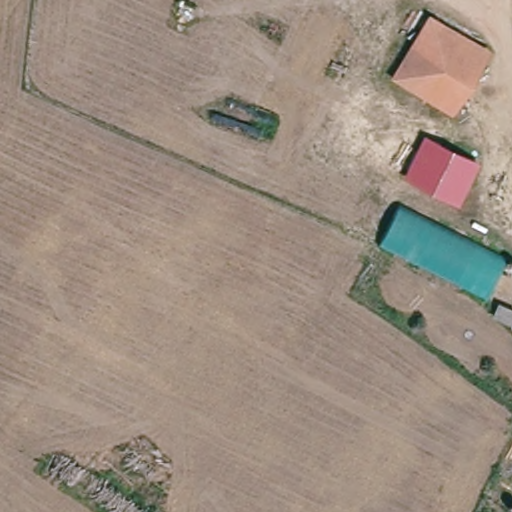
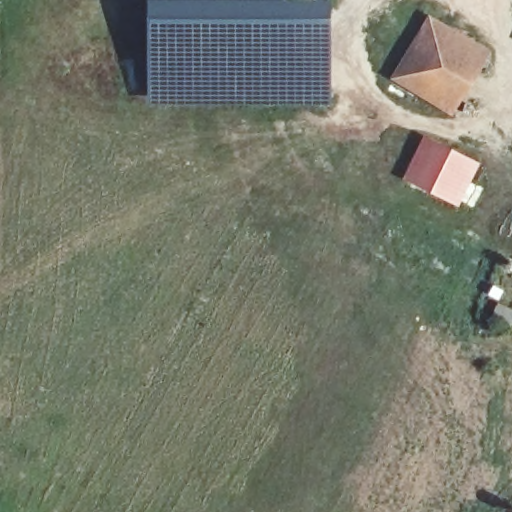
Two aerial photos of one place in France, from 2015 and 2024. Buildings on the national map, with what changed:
new [(150,106),(148,0),(330,1),(330,106),(150,106)]
unchanged [(391,78),(428,19),(487,55),(450,114),(391,78)]
unchanged [(402,178),(421,140),(473,166),(454,204),(402,178)]
demolished [(504,173),(512,153),(512,176),(504,173)]
unchanged [(506,259),(495,283),(489,295),(387,246),(400,221),(405,210),(506,259)]

